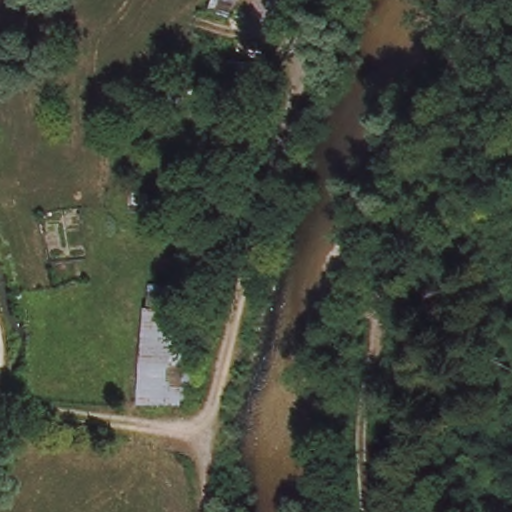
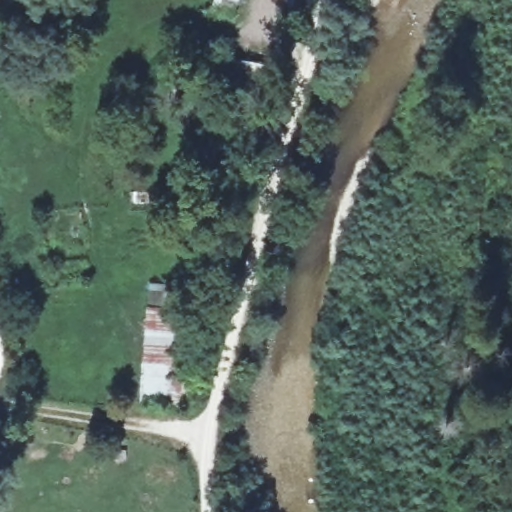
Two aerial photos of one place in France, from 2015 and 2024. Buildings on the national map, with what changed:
unchanged [(147,282),(167,280),(166,300),(190,301),(178,399),(140,397),(147,282)]

